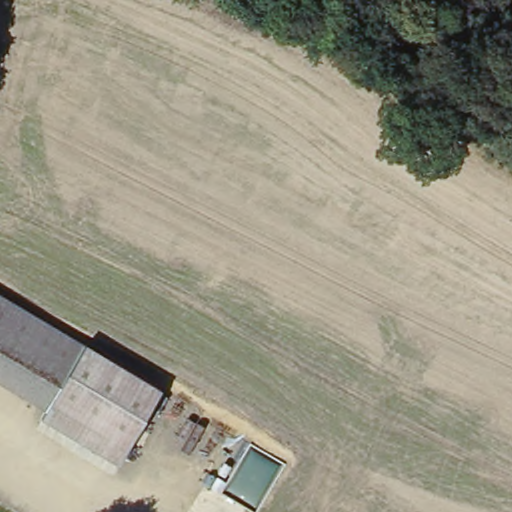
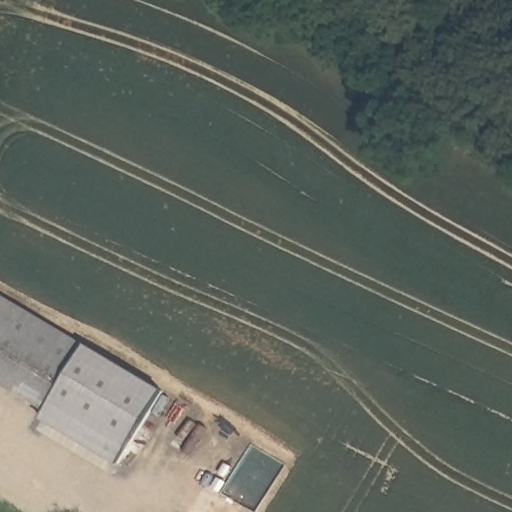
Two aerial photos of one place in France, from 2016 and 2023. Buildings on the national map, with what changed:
unchanged [(0,381),(0,300),(79,345),(49,395),(43,406),(0,381)]
unchanged [(161,390),(118,464),(41,420),(43,406),(49,395),(79,345),(161,390)]

